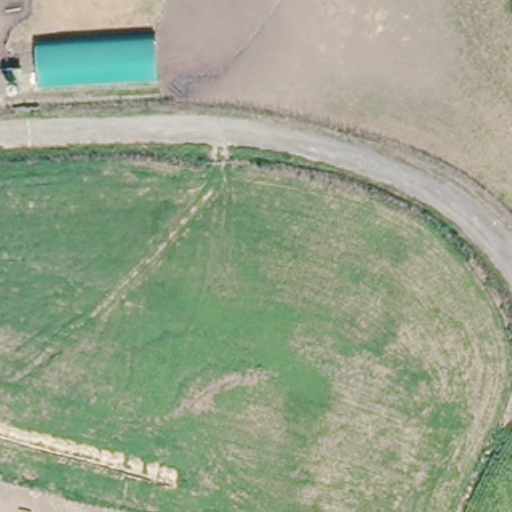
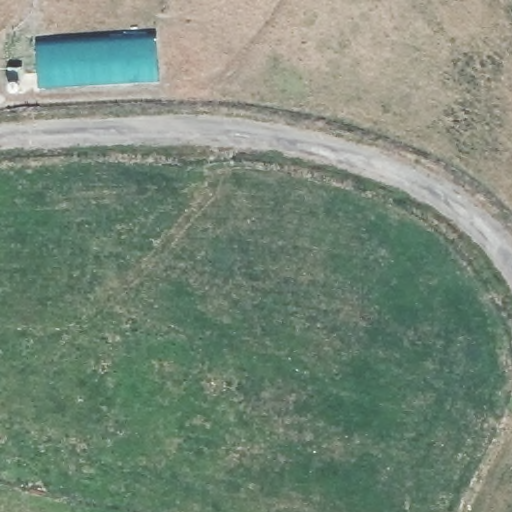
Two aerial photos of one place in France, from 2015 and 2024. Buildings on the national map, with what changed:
unchanged [(157,36),(160,79),(38,85),(36,44),(157,36)]

